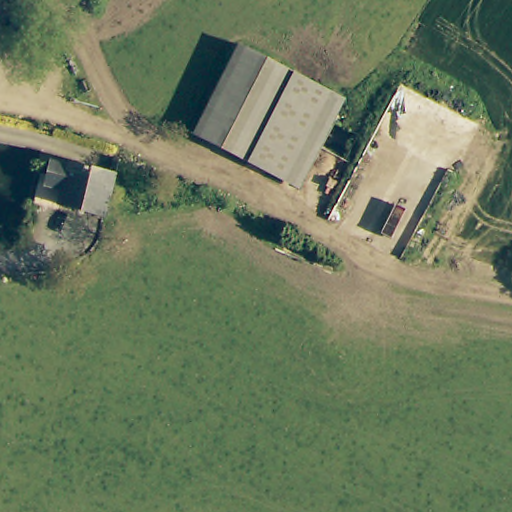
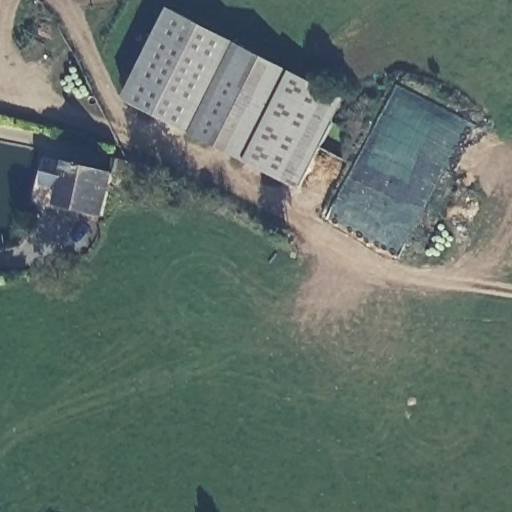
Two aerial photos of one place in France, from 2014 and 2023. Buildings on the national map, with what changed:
new [(201,134),(125,98),(171,8),(247,45),(201,134)]
unchanged [(338,94),(295,175),(291,182),(216,142),(201,134),(247,45),(338,94)]
unchanged [(43,184),(49,170),(55,158),(70,165),(104,178),(113,181),(95,224),(55,205),(61,192),(43,184)]

